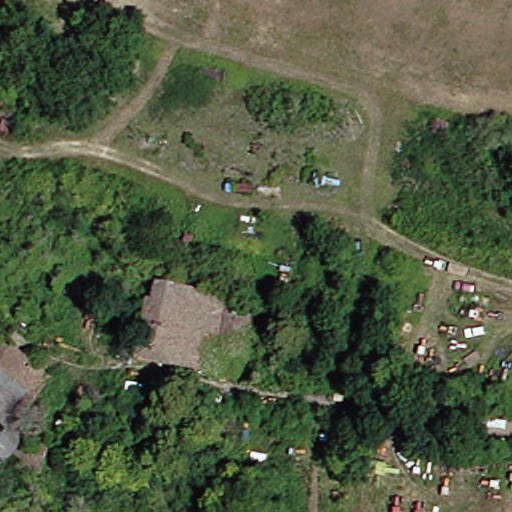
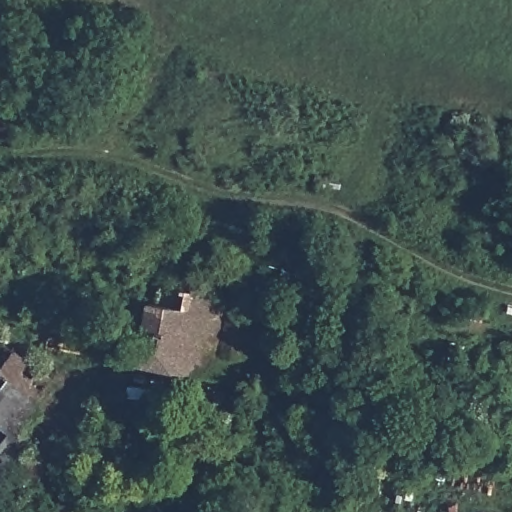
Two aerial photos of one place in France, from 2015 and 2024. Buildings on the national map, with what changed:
unchanged [(200,372),(143,366),(152,309),(159,310),(162,293),(210,297),(200,372)]
unchanged [(237,301),(232,354),(229,377),(200,372),(210,297),(237,301)]
unchanged [(259,303),(254,356),(232,354),(237,301),(259,303)]
unchanged [(14,444),(27,454),(60,450),(52,476),(17,468),(10,479),(0,472),(0,344),(7,335),(40,360),(66,380),(14,444)]

